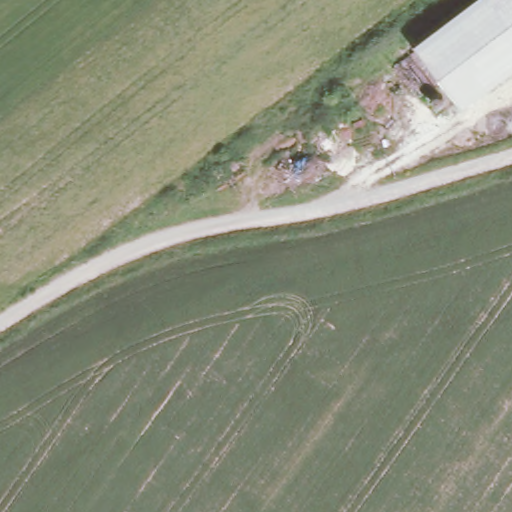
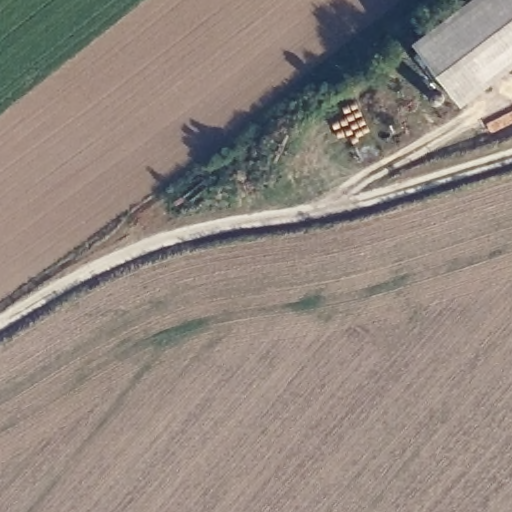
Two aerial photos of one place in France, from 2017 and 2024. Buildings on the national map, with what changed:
unchanged [(415,41),(470,0),(512,0),(512,69),(462,106),(415,41)]

